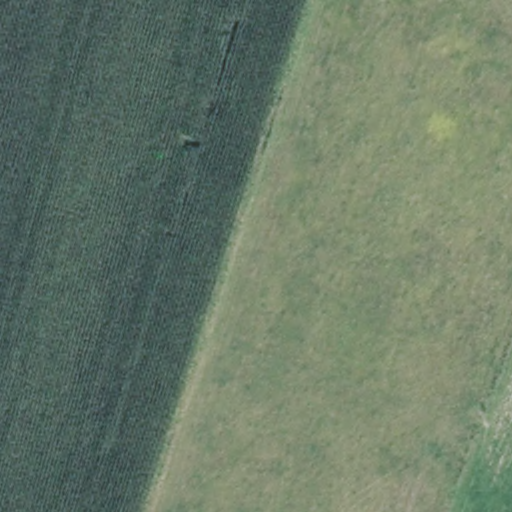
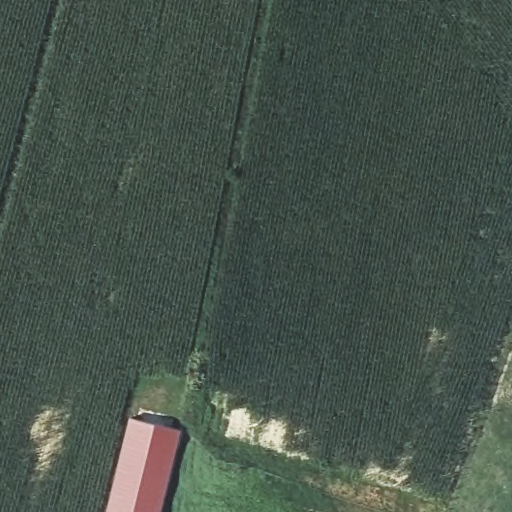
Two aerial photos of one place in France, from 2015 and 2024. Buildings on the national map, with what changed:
new [(179,429),(159,512),(109,512),(132,417),(179,429)]

